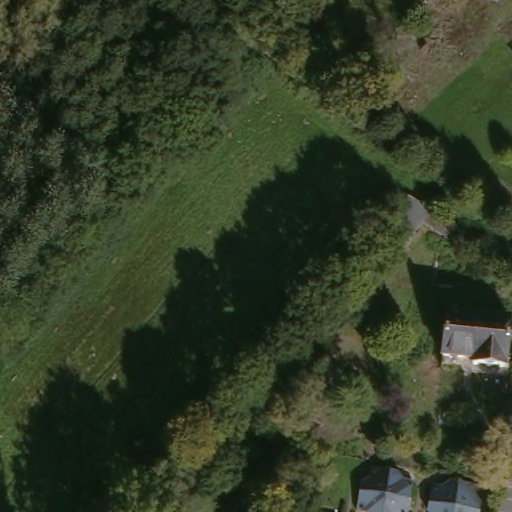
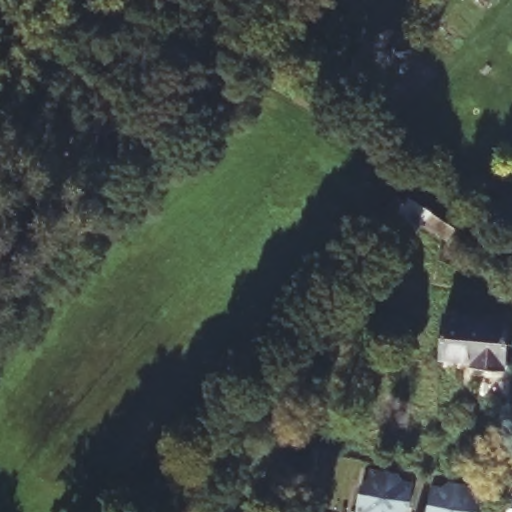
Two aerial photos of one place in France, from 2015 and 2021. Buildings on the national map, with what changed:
unchanged [(271,55),(262,48),(252,41),(261,29),(270,36),(280,43),(271,55)]
unchanged [(382,228),(410,195),(434,209),(405,246),(382,228)]
unchanged [(461,234),(451,245),(434,232),(443,221),(461,234)]
unchanged [(501,368),(468,362),(468,359),(445,356),(451,312),(506,320),(501,368)]
unchanged [(412,499),(405,501),(404,512),(375,512),(375,511),(360,509),(364,487),(370,482),(372,465),(394,469),(399,475),(415,478),(412,499)]
unchanged [(430,506),(435,480),(446,481),(456,476),(478,480),(476,495),(482,504),(481,512),(434,512),(430,506)]

